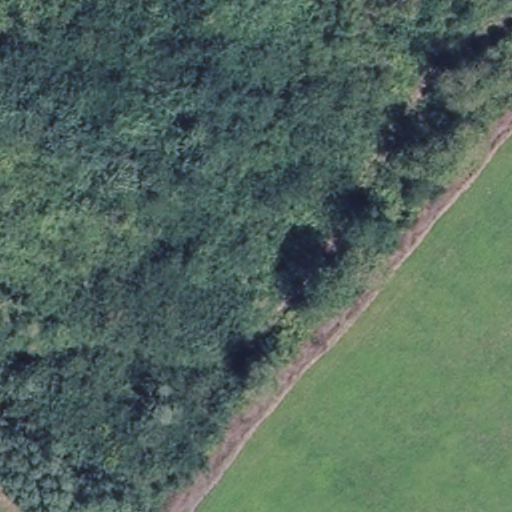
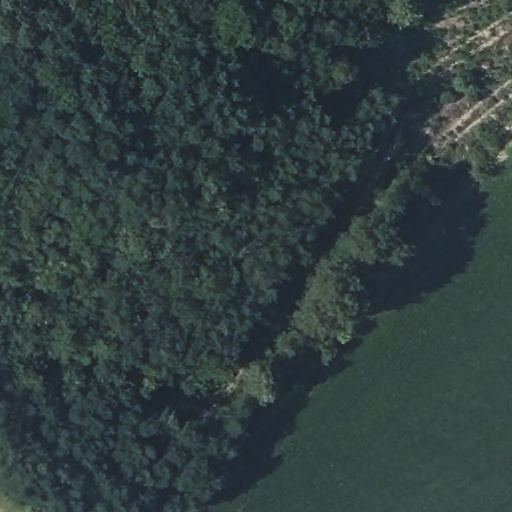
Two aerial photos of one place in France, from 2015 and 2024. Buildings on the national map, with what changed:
[]

